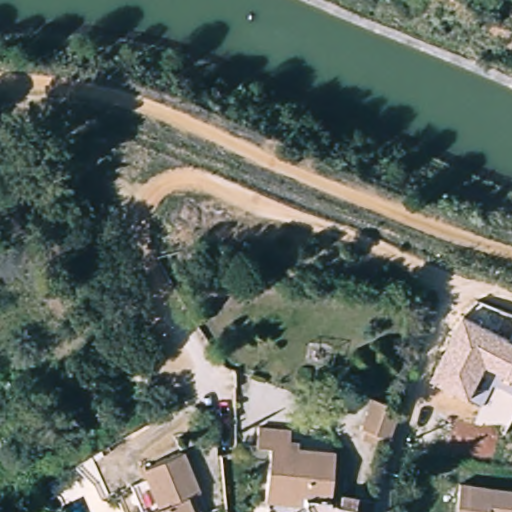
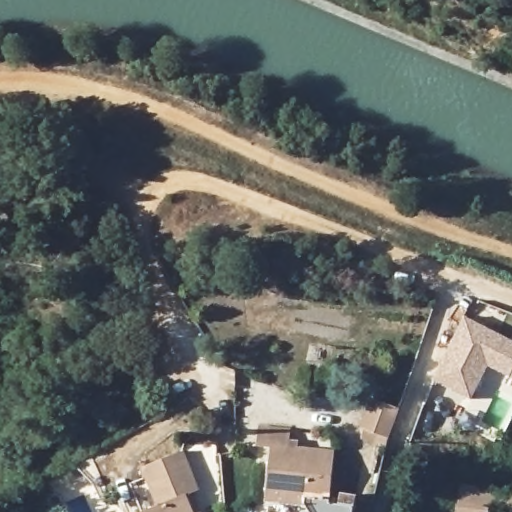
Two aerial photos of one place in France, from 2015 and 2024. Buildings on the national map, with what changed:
unchanged [(512,392),(494,382),(484,403),(470,397),(434,378),(465,316),(512,341),(512,392)]
unchanged [(400,407),(388,439),(382,437),(378,446),(361,440),(371,397),(400,407)]
unchanged [(273,448),(261,447),(261,426),(291,427),(290,444),(337,447),(330,502),(343,505),(345,492),(356,494),(354,512),(313,512),(310,508),(270,507),(270,496),(273,448)]
unchanged [(201,509),(196,512),(148,512),(134,490),(150,482),(142,469),(181,447),(201,482),(191,491),(201,509)]
unchanged [(512,487),(512,512),(456,512),(465,476),(512,487)]

